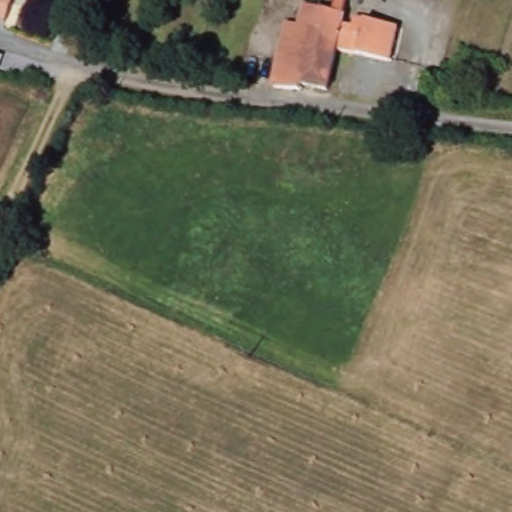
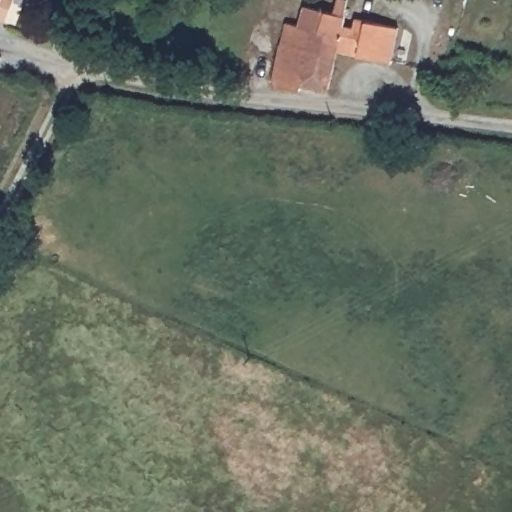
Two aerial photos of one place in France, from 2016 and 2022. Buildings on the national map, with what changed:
unchanged [(0,19),(0,0),(13,0),(7,21),(0,19)]
unchanged [(60,23),(68,0),(84,0),(75,29),(60,23)]
unchanged [(337,45),(336,52),(308,46),(313,26),(320,27),(325,6),(327,6),(333,8),(334,0),(348,0),(343,20),(353,22),(355,14),(399,24),(392,57),(337,45)]
unchanged [(320,27),(313,26),(308,46),(336,52),(333,65),(328,85),(300,80),(300,85),(272,84),(287,17),(301,20),(305,2),(325,6),(320,27)]

